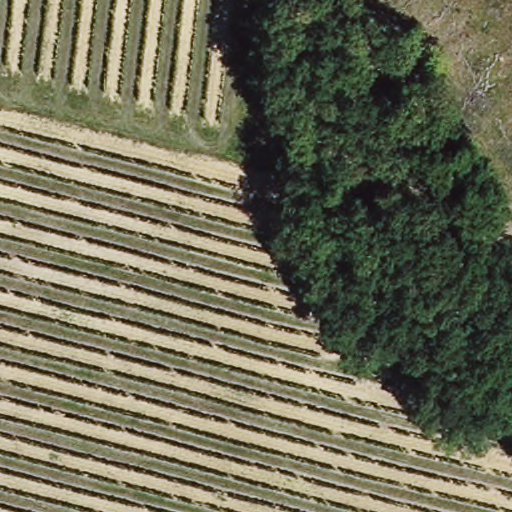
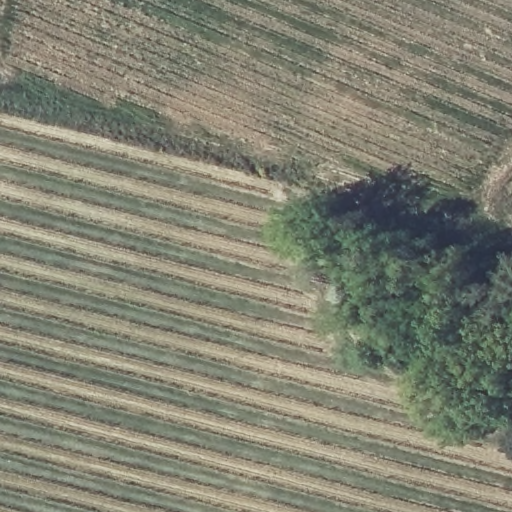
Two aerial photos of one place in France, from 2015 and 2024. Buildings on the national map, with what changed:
[]

